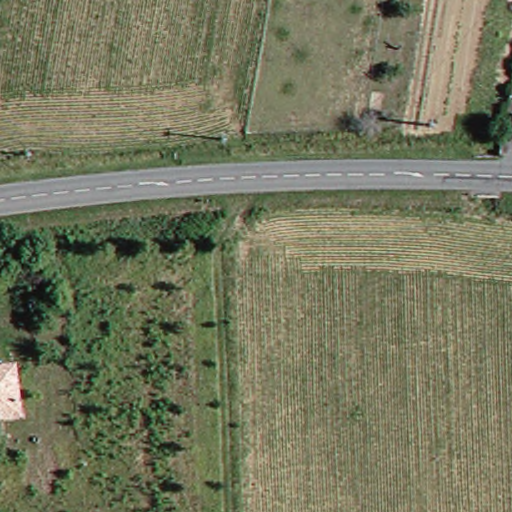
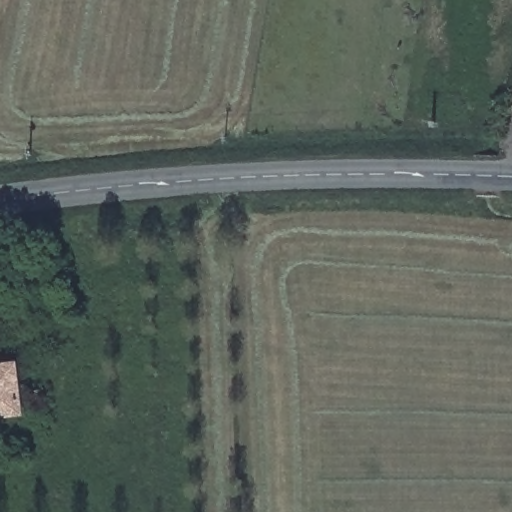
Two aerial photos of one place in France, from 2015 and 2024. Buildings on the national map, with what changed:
unchanged [(0,414),(0,367),(12,367),(13,414),(0,414)]

